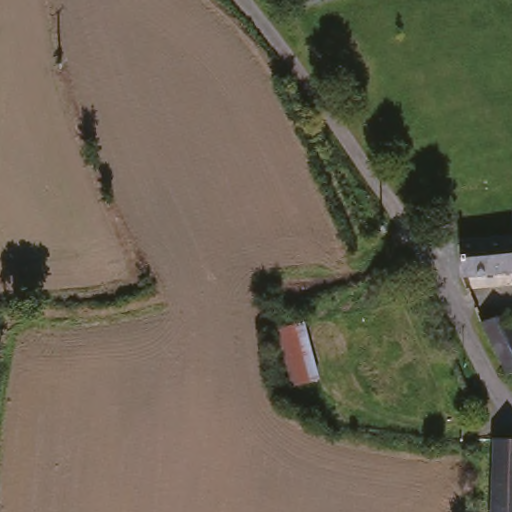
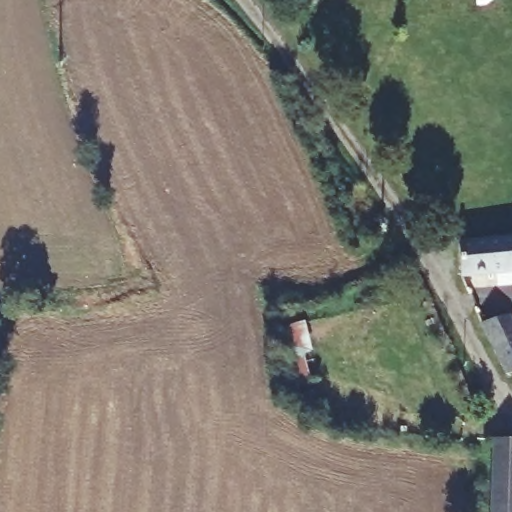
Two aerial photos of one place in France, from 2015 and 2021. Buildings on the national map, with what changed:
unchanged [(512,242),(508,242),(508,248),(510,272),(465,278),(462,241),(512,235),(512,242)]
unchanged [(508,242),(512,242),(512,272),(510,272),(508,248),(508,242)]
unchanged [(506,312),(512,323),(512,370),(485,323),(506,312)]
unchanged [(285,331),(312,324),(327,382),(297,390),(285,331)]
unchanged [(493,443),(492,434),(512,436),(512,512),(490,512),(493,443)]

